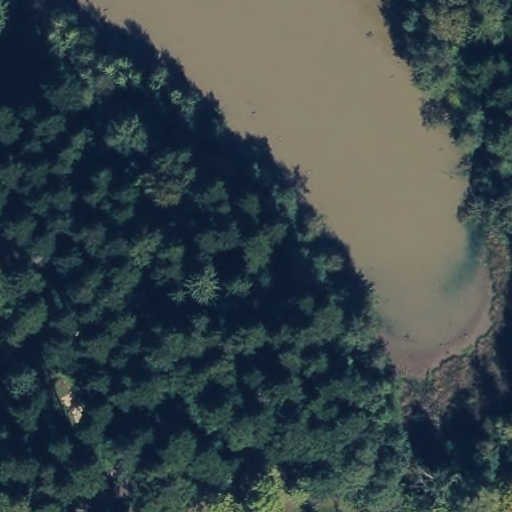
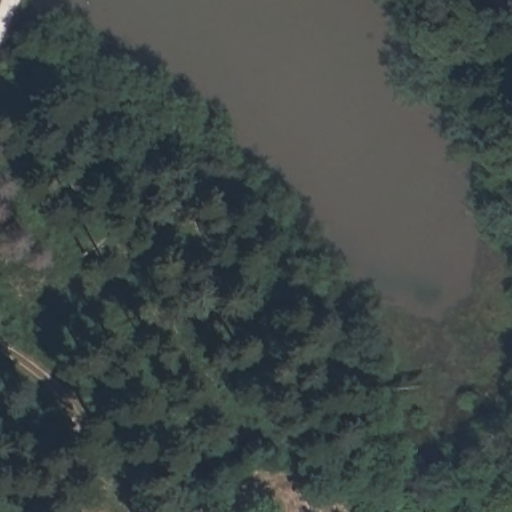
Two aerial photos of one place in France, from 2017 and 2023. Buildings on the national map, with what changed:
[]

